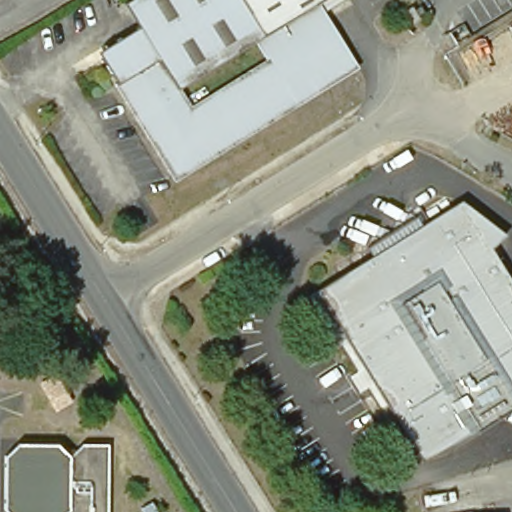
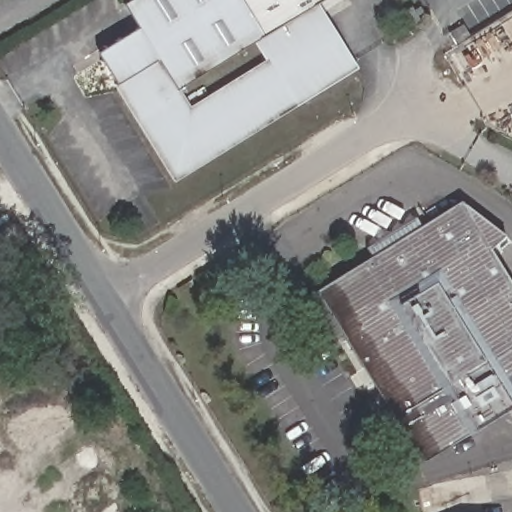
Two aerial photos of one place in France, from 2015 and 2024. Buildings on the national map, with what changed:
unchanged [(175,183),(92,50),(138,21),(128,4),(134,0),(332,0),(322,7),(360,68),(175,183)]
unchanged [(421,20),(407,29),(399,16),(413,7),(421,20)]
unchanged [(459,204),(469,198),(512,232),(499,247),(512,269),(512,409),(430,460),(382,381),(371,364),(324,288),(459,204)]
demolished [(20,448),(65,448),(75,458),(75,482),(113,483),(113,512),(10,512),(10,457),(20,448)]
demolished [(150,501),(157,512),(141,512),(139,508),(150,501)]

